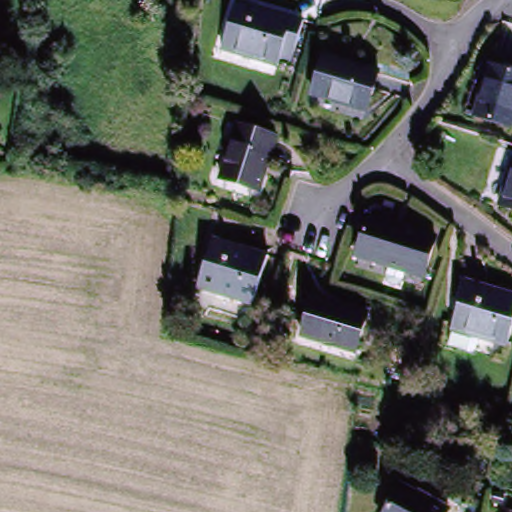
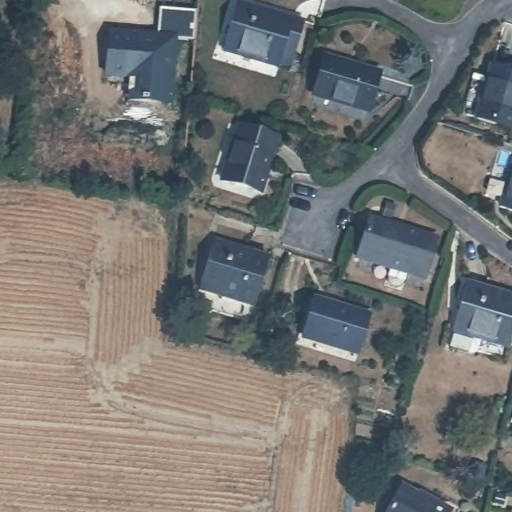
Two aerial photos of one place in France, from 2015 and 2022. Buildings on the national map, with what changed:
unchanged [(291,66),(279,62),(277,67),(223,52),(238,2),(292,19),(304,22),(291,66)]
new [(129,78),(142,79),(106,76),(109,33),(132,35),(156,37),(156,41),(159,8),(198,12),(195,42),(174,40),(169,102),(146,100),(146,102),(140,102),(128,101),(129,78)]
unchanged [(308,96),(320,58),(374,74),(362,113),(308,96)]
unchanged [(474,118),(491,67),(512,74),(512,130),(474,118)]
unchanged [(221,182),(238,127),(278,140),(261,193),(221,182)]
unchanged [(499,208),(512,167),(512,212),(499,208)]
unchanged [(405,280),(401,282),(396,280),(393,276),(393,272),(395,265),(362,254),(374,214),(441,234),(428,275),(410,269),(408,277),(405,280)]
unchanged [(199,291),(214,242),(268,259),(254,307),(199,291)]
unchanged [(467,356),(444,350),(449,332),(448,332),(462,283),(512,298),(512,315),(503,348),(475,340),(472,352),(467,356)]
unchanged [(299,339),(310,300),(364,316),(352,355),(299,339)]
unchanged [(511,422),(512,418),(512,423),(511,422)]
unchanged [(449,512),(387,512),(401,486),(419,495),(419,494),(449,511),(449,512)]

